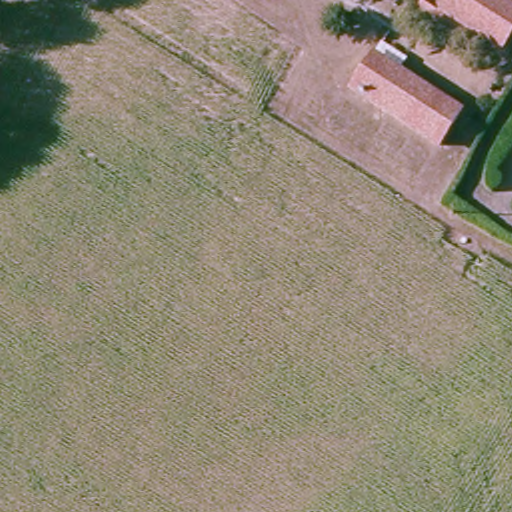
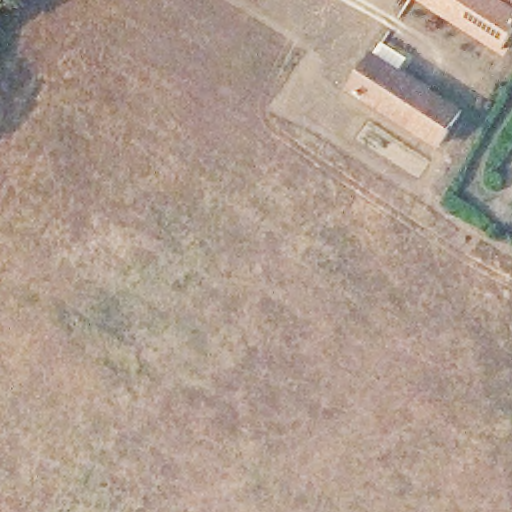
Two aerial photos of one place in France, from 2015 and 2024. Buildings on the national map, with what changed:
unchanged [(414,2),(415,0),(512,0),(512,29),(498,52),(414,2)]
unchanged [(432,147),(351,93),(380,46),(406,62),(398,75),(454,110),(432,147)]

